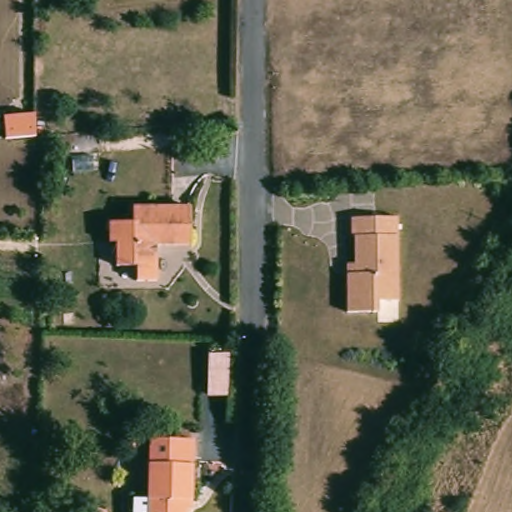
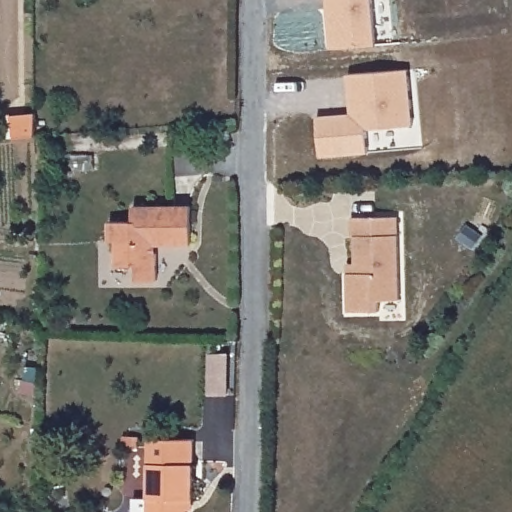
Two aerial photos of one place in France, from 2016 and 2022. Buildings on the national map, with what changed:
new [(372,0),(375,45),(330,50),(326,0),(372,0)]
new [(346,75),(408,69),(412,126),(365,130),(366,154),(320,157),(316,116),(350,114),(346,75)]
unchanged [(5,140),(4,117),(35,115),(36,137),(5,140)]
unchanged [(157,281),(137,282),(137,267),(116,267),(116,243),(110,243),(109,223),(133,222),(132,207),(191,206),(191,246),(157,247),(157,255),(157,281)]
unchanged [(351,273),(351,234),(348,234),(347,219),(395,218),(395,298),(375,300),(375,312),(341,313),(340,273),(351,273)]
unchanged [(209,405),(209,365),(227,366),(227,406),(209,405)]
unchanged [(137,454),(127,453),(123,453),(123,443),(127,443),(138,444),(137,454)]
unchanged [(133,504),(148,505),(150,444),(195,445),(192,506),(192,512),(133,512),(133,504)]

